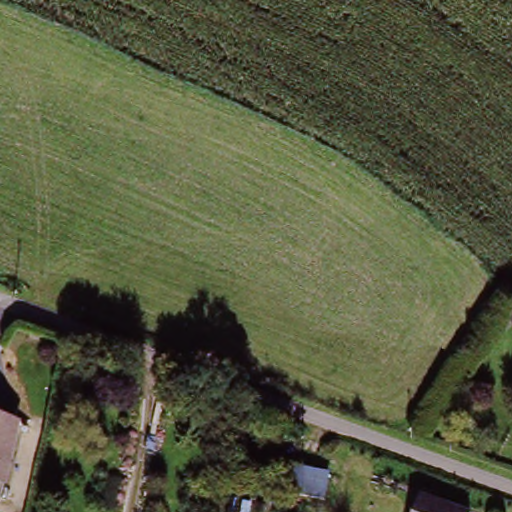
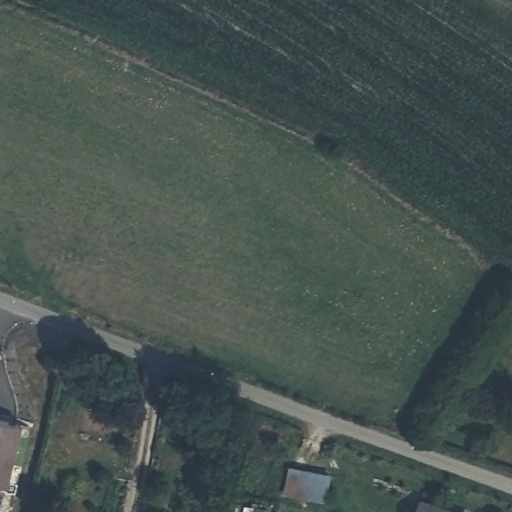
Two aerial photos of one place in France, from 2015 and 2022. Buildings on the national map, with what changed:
unchanged [(0,419),(22,424),(9,485),(1,505),(0,505),(0,419)]
unchanged [(277,496),(280,465),(329,475),(322,505),(277,496)]
unchanged [(421,499),(456,512),(416,512),(421,499)]

